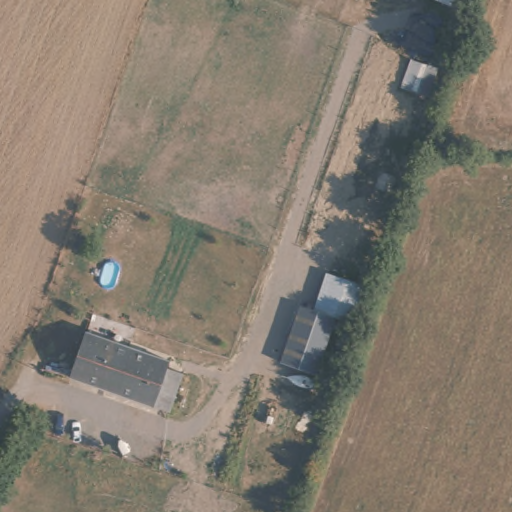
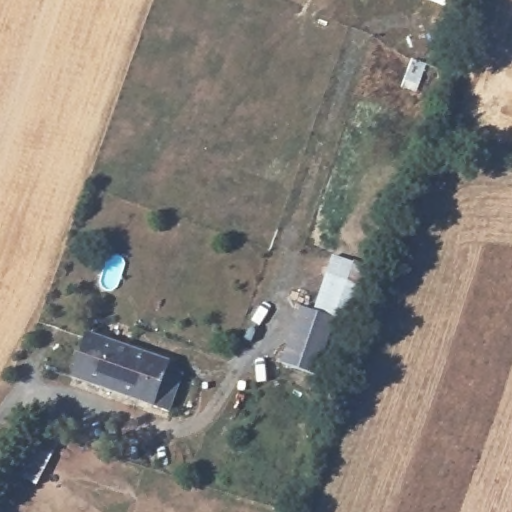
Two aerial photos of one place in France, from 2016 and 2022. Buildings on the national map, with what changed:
unchanged [(421,136),(391,127),(410,60),(438,70),(421,136)]
unchanged [(297,306),(333,318),(315,374),(278,362),(297,306)]
unchanged [(138,351),(123,396),(97,387),(77,379),(92,336),(112,343),(138,351)]
unchanged [(173,371),(188,376),(186,384),(175,414),(162,410),(123,396),(138,351),(176,364),(173,371)]

